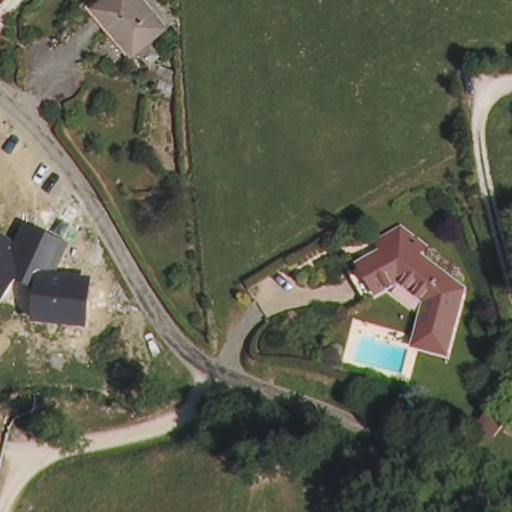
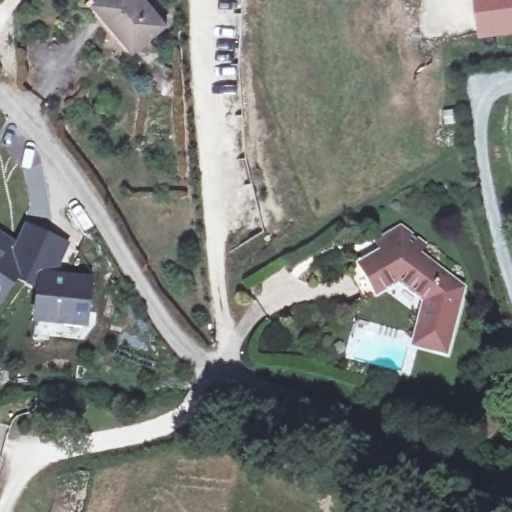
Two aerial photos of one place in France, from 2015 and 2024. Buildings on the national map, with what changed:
unchanged [(100,0),(146,0),(170,30),(140,55),(101,9),(97,3),(100,0)]
new [(476,37),(472,0),(512,0),(512,34),(476,37)]
unchanged [(24,224),(70,243),(57,275),(93,277),(87,328),(32,323),(34,290),(16,281),(0,306),(0,232),(15,243),(24,224)]
unchanged [(399,282),(377,295),(362,270),(384,255),(378,245),(383,241),(400,231),(425,249),(418,258),(462,292),(445,355),(416,347),(427,303),(399,282)]

